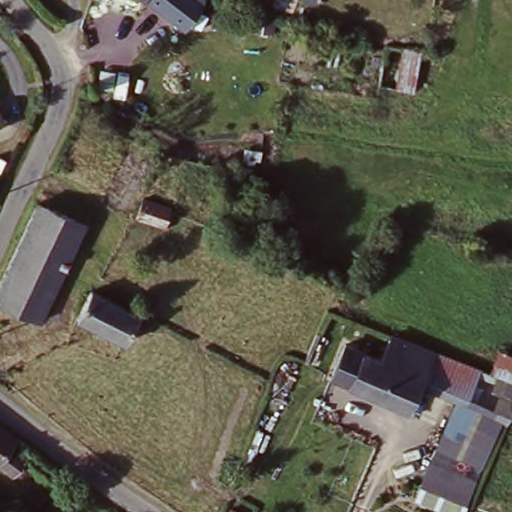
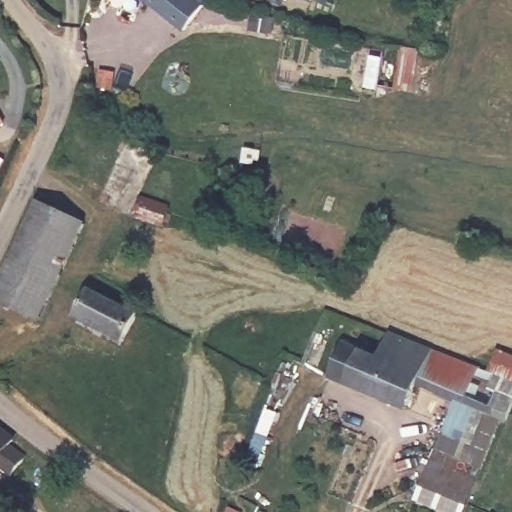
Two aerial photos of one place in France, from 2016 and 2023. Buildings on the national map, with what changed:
unchanged [(191,26),(160,0),(204,0),(191,26)]
unchanged [(426,54),(415,95),(380,85),(390,46),(426,54)]
unchanged [(7,120),(0,125),(0,106),(7,120)]
unchanged [(174,205),(167,225),(135,216),(141,195),(174,205)]
unchanged [(26,245),(47,204),(92,226),(70,267),(26,245)]
unchanged [(46,316),(2,294),(26,245),(70,267),(46,316)]
unchanged [(131,344),(81,319),(96,290),(146,315),(131,344)]
unchanged [(412,416),(328,379),(347,342),(381,357),(395,329),(440,350),(423,391),(412,416)]
unchanged [(440,350),(485,371),(470,410),(423,391),(440,350)]
unchanged [(512,357),(512,385),(491,376),(499,352),(512,357)]
unchanged [(512,418),(488,462),(485,470),(467,462),(486,413),(470,410),(477,393),(495,398),(505,381),(512,385),(512,418)]
unchanged [(19,438),(12,445),(30,457),(14,475),(0,464),(0,425),(19,438)]
unchanged [(485,470),(475,495),(430,476),(440,451),(485,470)]

